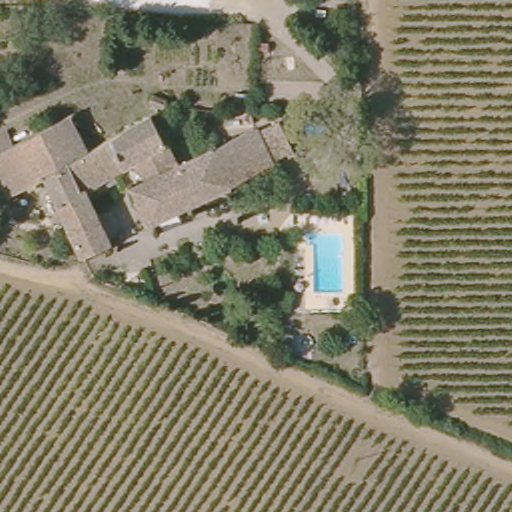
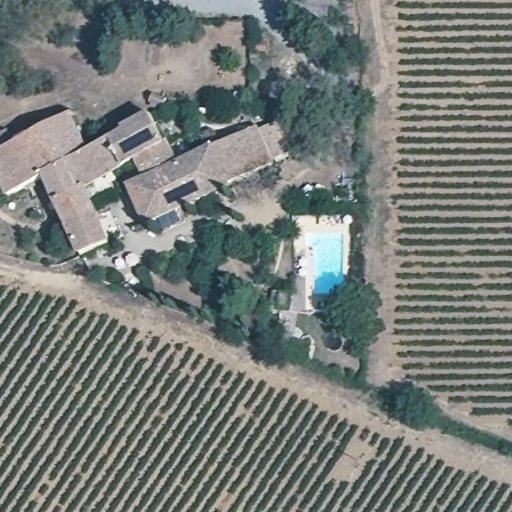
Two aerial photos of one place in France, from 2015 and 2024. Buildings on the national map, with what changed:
unchanged [(0,153),(0,143),(30,129),(34,137),(106,104),(111,111),(132,102),(153,117),(122,133),(128,145),(53,181),(9,204),(0,186),(0,153)]
unchanged [(95,193),(107,219),(80,233),(53,181),(128,145),(122,133),(153,117),(162,114),(190,165),(264,126),(285,166),(162,229),(142,189),(156,181),(149,167),(95,193)]
unchanged [(107,219),(123,248),(95,263),(80,233),(107,219)]
unchanged [(290,293),(290,310),(277,308),(279,292),(290,293)]

